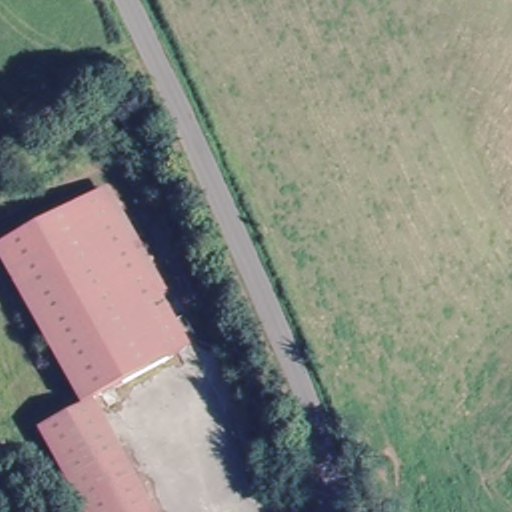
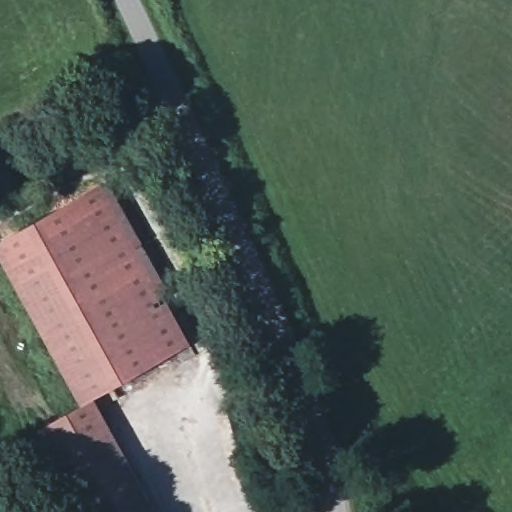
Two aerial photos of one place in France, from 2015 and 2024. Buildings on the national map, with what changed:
unchanged [(0,243),(103,187),(188,343),(92,395),(76,403),(0,264),(0,243)]
unchanged [(76,403),(92,395),(157,512),(80,512),(33,428),(76,403)]

